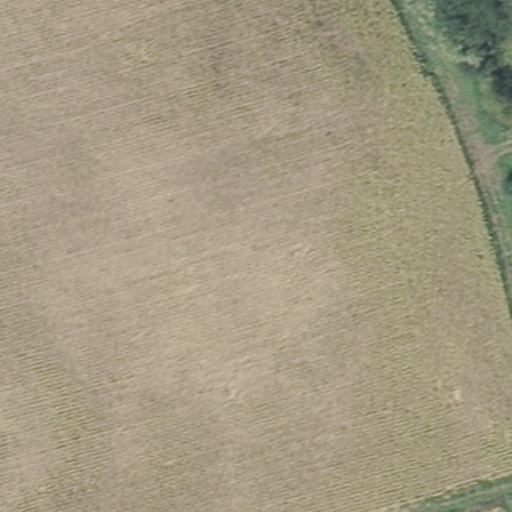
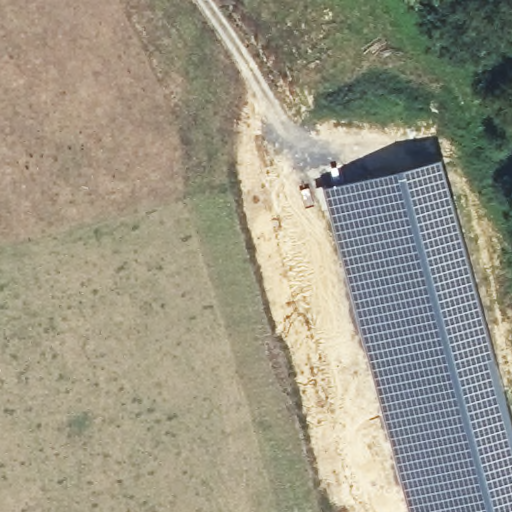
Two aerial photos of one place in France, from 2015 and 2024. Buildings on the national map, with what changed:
new [(442,154),(512,413),(512,512),(410,512),(325,186),(442,154)]

